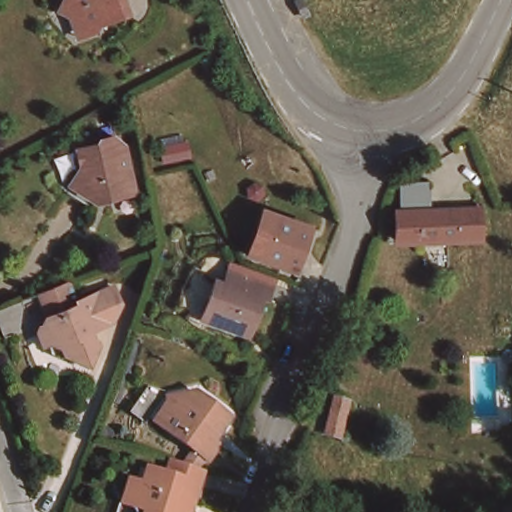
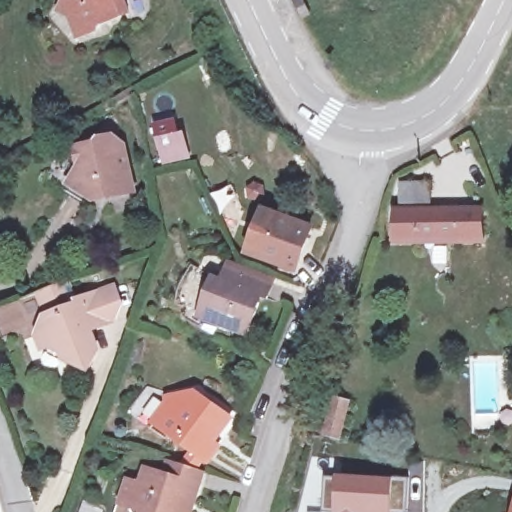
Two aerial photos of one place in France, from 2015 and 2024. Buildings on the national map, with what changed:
unchanged [(127,11),(109,16),(94,7),(87,18),(65,27),(59,0),(124,0),(127,11)]
unchanged [(97,196),(69,176),(83,156),(80,141),(102,136),(101,130),(117,129),(122,141),(129,140),(136,189),(97,196)]
unchanged [(394,193),(425,196),(423,222),(478,224),(476,252),(392,247),(394,193)]
unchanged [(292,274),(259,262),(245,256),(261,215),(275,220),(308,232),(292,274)]
unchanged [(197,300),(204,281),(217,286),(222,270),(233,275),(265,287),(260,302),(253,301),(240,338),(200,324),(190,321),(197,300)]
unchanged [(91,341),(94,340),(97,351),(89,371),(65,360),(61,353),(49,348),(42,351),(37,337),(46,318),(47,318),(37,294),(71,282),(79,302),(101,293),(114,288),(120,303),(112,322),(87,332),(91,341)]
unchanged [(309,429),(321,391),(337,395),(327,432),(309,429)]
new [(338,397),(352,402),(342,437),(327,432),(338,397)]
unchanged [(194,403),(221,425),(214,435),(206,433),(197,445),(202,451),(190,466),(151,430),(143,422),(154,411),(157,400),(194,403)]
unchanged [(182,506),(180,512),(123,512),(128,493),(146,495),(154,463),(197,474),(187,507),(182,506)]
new [(337,476),(395,478),(409,478),(408,512),(323,512),(326,476),(337,476)]

